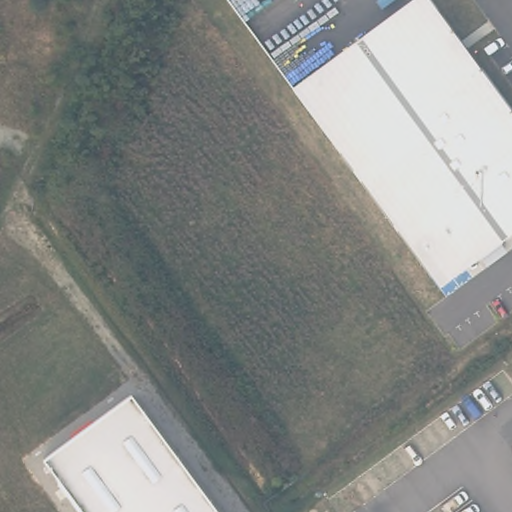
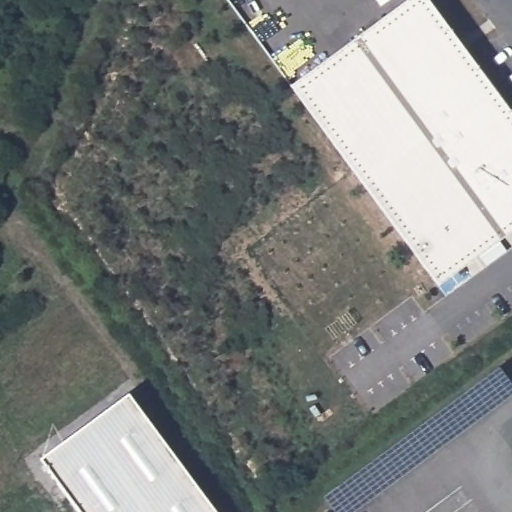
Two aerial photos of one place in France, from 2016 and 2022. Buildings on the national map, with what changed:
unchanged [(512,108),(512,238),(441,289),(292,87),(411,0),(433,0),(512,108)]
unchanged [(218,512),(83,512),(45,461),(132,395),(218,512)]

